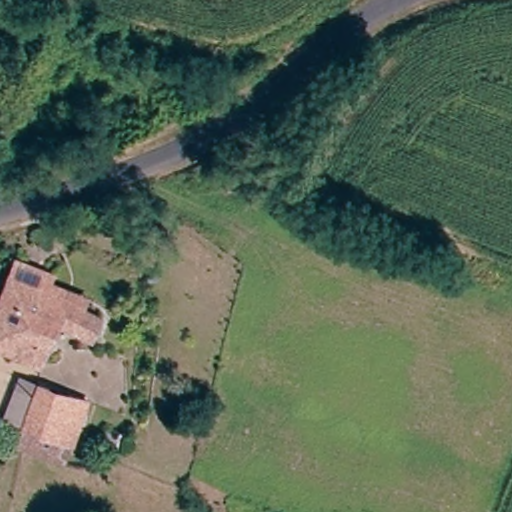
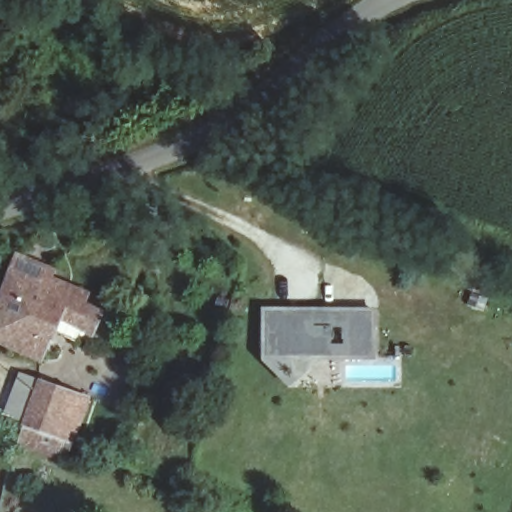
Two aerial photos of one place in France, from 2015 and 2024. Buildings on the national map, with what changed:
unchanged [(94,305),(91,314),(98,317),(88,340),(54,326),(34,367),(0,352),(0,280),(6,280),(12,282),(21,267),(28,251),(56,261),(49,278),(90,294),(87,302),(94,305)]
new [(377,310),(377,361),(321,363),(288,390),(261,361),(262,310),(377,310)]
unchanged [(25,432),(28,424),(11,417),(23,384),(39,390),(41,384),(88,400),(72,443),(64,440),(58,459),(14,445),(18,430),(25,432)]

